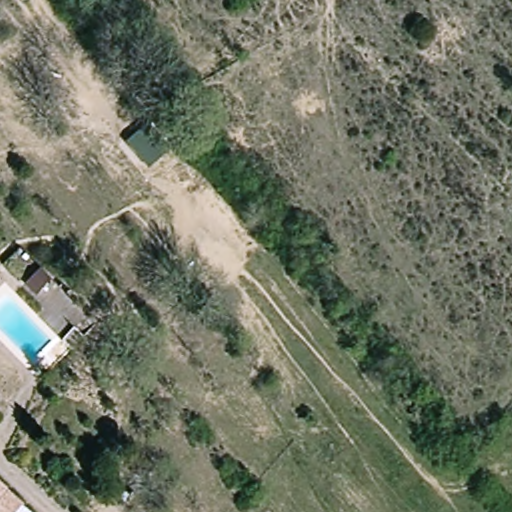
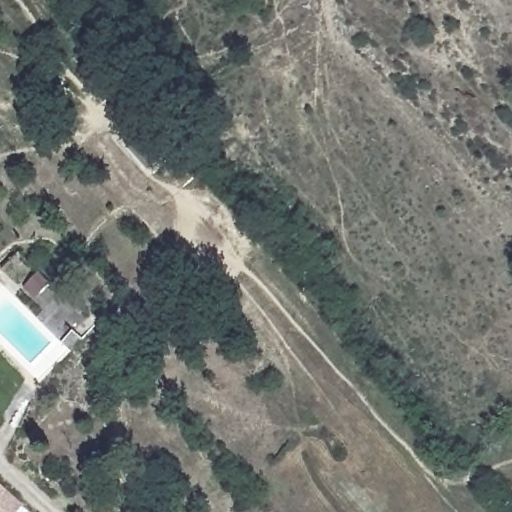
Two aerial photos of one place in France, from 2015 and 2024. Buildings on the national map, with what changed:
unchanged [(28,502),(20,512),(0,512),(0,479),(28,502)]

